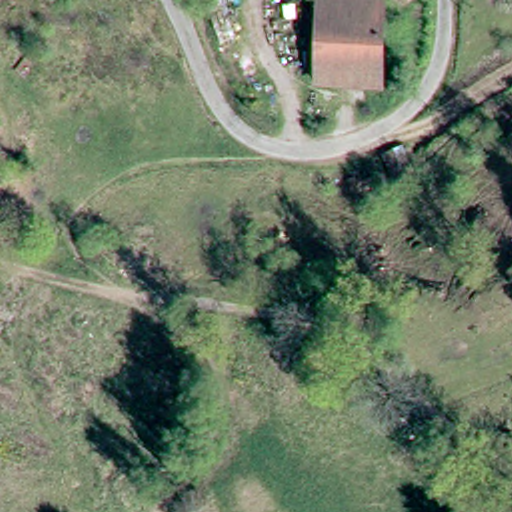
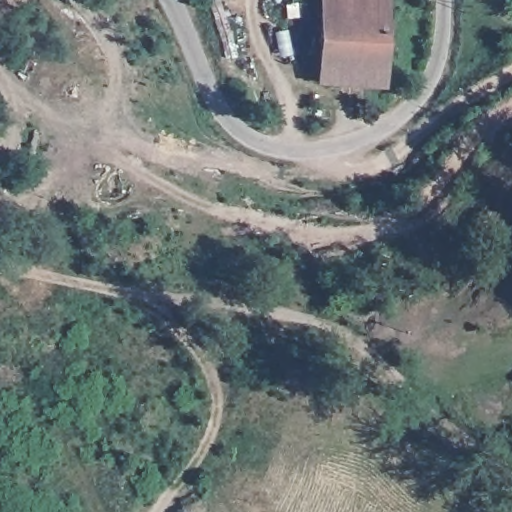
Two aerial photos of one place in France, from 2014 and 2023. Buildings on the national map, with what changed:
unchanged [(326,0),(390,0),(384,86),(323,84),(326,0)]

